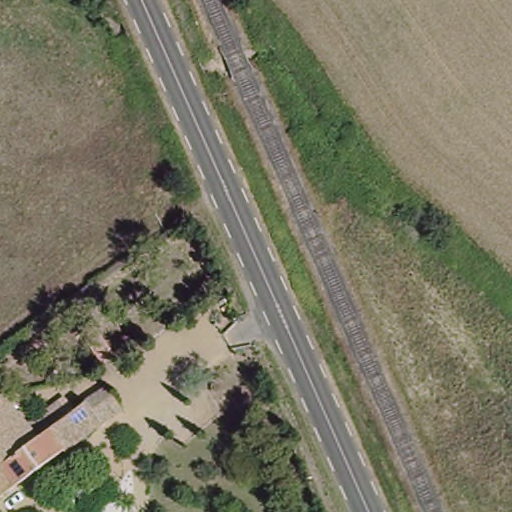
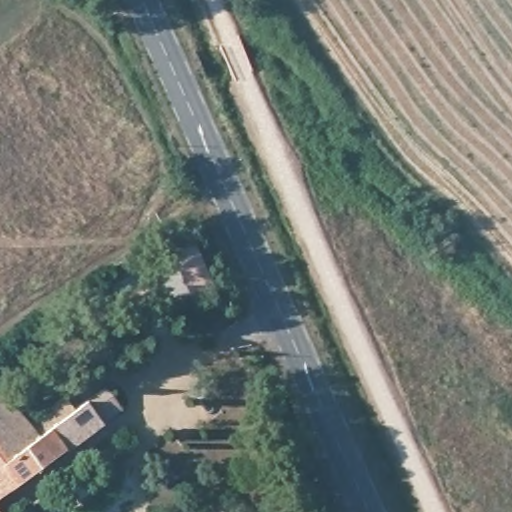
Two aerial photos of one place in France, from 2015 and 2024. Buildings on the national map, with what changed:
unchanged [(0,393),(2,392),(29,423),(60,400),(70,413),(101,390),(116,411),(0,495),(0,393)]

